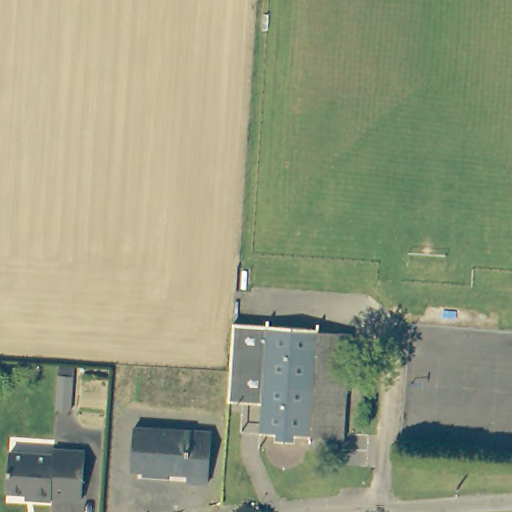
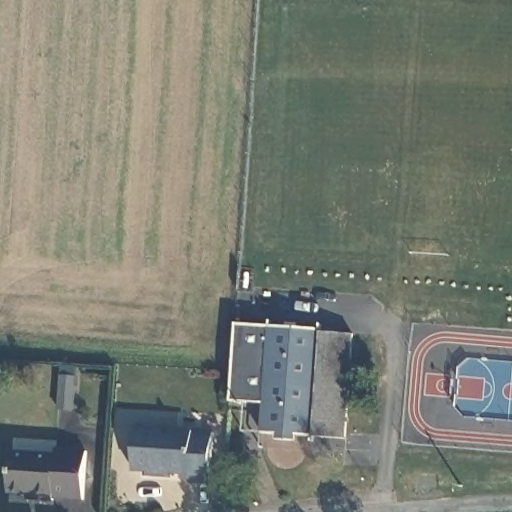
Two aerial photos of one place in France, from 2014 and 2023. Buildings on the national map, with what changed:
unchanged [(344,438),(258,433),(260,405),(230,403),(231,370),(235,319),(318,325),(318,330),(351,331),(344,438)]
unchanged [(64,366),(78,367),(75,408),(61,407),(64,366)]
unchanged [(135,428),(210,433),(207,484),(184,482),(185,474),(133,471),(135,428)]
unchanged [(10,450),(54,452),(54,449),(82,450),(80,499),(53,497),(52,501),(31,500),(32,492),(7,491),(10,450)]

